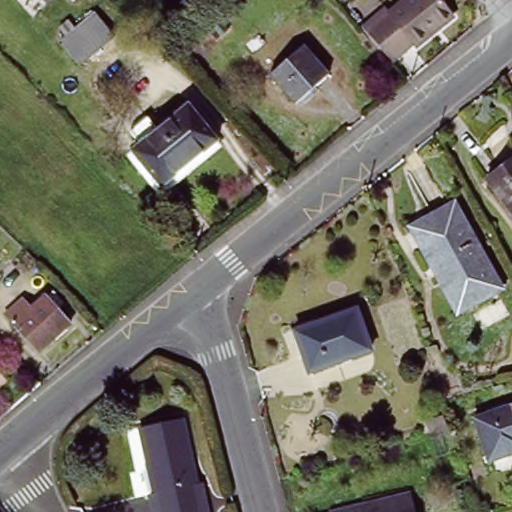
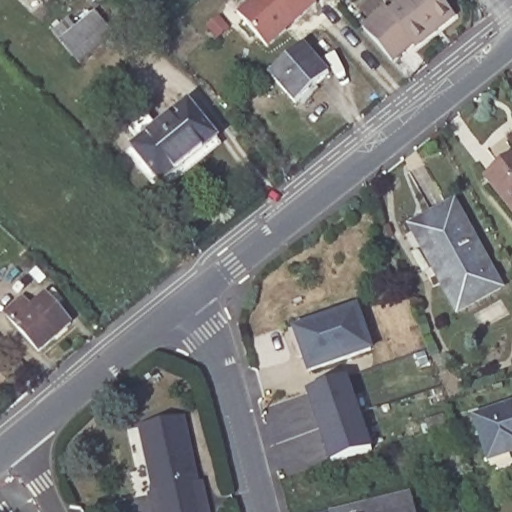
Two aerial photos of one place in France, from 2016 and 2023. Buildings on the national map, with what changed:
new [(236,13),(251,0),(312,0),(315,4),(265,46),(236,13)]
unchanged [(395,59),(370,30),(365,24),(386,6),(392,12),(407,0),(444,0),(457,15),(421,45),(417,41),(395,59)]
unchanged [(94,14),(112,36),(78,65),(60,41),(94,14)]
unchanged [(303,45),(328,73),(295,103),(270,74),(303,45)]
unchanged [(148,122),(157,133),(188,107),(217,141),(162,188),(134,154),(140,148),(131,136),(148,122)]
unchanged [(512,165),(512,203),(493,180),(512,165)]
unchanged [(465,311),(419,226),(460,203),(506,289),(465,311)]
unchanged [(24,298),(31,307),(55,287),(66,301),(60,306),(73,322),(40,349),(7,312),(24,298)]
unchanged [(322,328),(320,321),(356,308),(370,349),(310,369),(298,336),(322,328)]
new [(370,449),(330,461),(306,392),(346,378),(370,449)]
unchanged [(512,443),(509,444),(511,450),(491,457),(476,413),(512,401),(512,443)]
unchanged [(431,438),(429,432),(425,421),(442,416),(445,427),(453,424),(455,431),(431,438)]
unchanged [(185,417),(198,482),(183,486),(186,505),(161,512),(142,428),(185,417)]
new [(161,512),(186,505),(183,486),(198,482),(202,481),(209,512),(150,512),(147,493),(156,491),(161,512)]
unchanged [(410,498),(414,512),(347,512),(410,498)]

